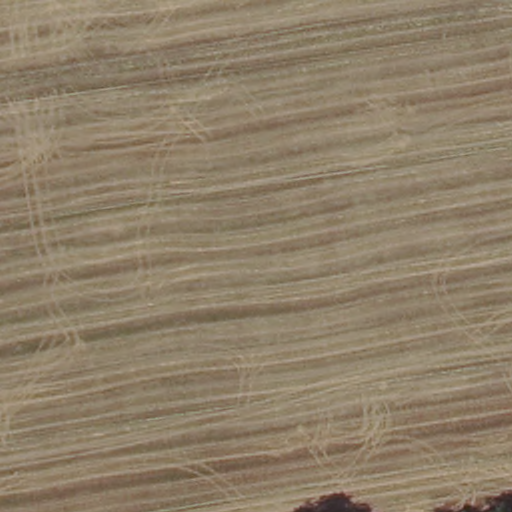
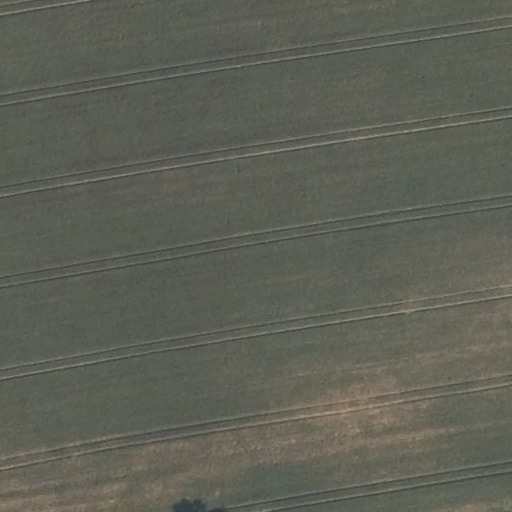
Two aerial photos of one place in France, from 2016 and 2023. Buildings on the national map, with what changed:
[]

